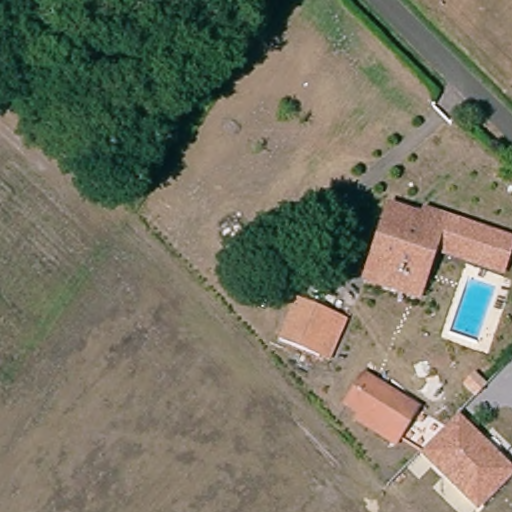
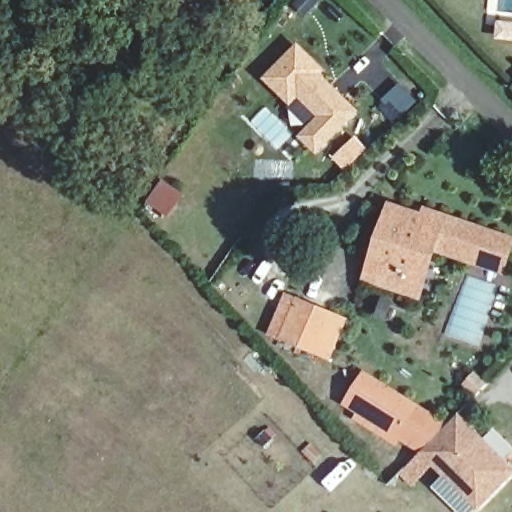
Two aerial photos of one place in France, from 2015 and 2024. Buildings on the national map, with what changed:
new [(325,70),(321,75),(359,112),(317,157),(296,137),(315,117),(299,99),(290,106),(262,80),(298,43),(325,70)]
unchanged [(388,293),(354,282),(381,202),(440,222),(424,269),(414,302),(388,293)]
unchanged [(422,204),(512,235),(512,244),(504,274),(431,249),(440,222),(419,215),(422,204)]
unchanged [(309,356),(270,340),(288,298),(327,315),(341,320),(324,362),(309,356)]
unchanged [(344,420),(349,414),(334,406),(356,371),(414,407),(393,442),(389,448),(344,420)]
unchanged [(479,504),(434,459),(423,449),(458,413),(469,423),(512,466),(512,471),(479,504)]

